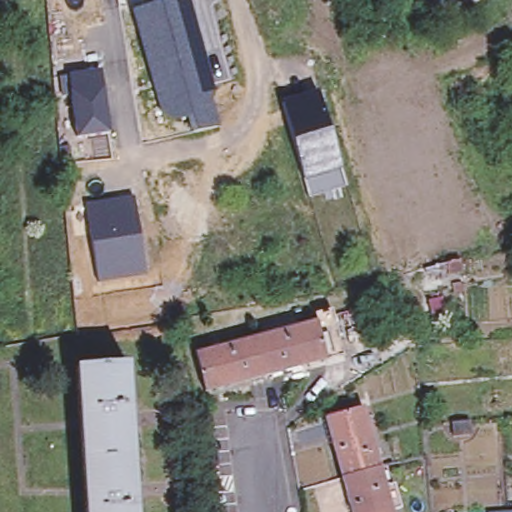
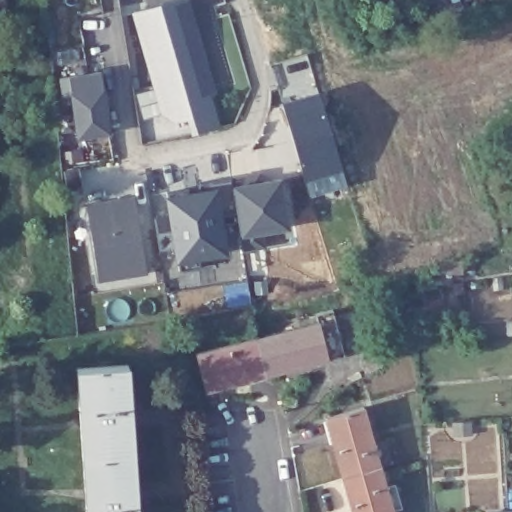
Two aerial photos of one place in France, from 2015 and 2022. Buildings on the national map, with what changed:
unchanged [(147,4),(165,0),(188,0),(215,90),(210,92),(219,126),(191,132),(187,115),(171,119),(157,110),(130,10),(118,8),(117,0),(147,0),(147,4)]
unchanged [(101,68),(110,135),(75,140),(65,74),(101,68)]
unchanged [(340,168),(347,189),(310,200),(303,181),(282,106),(318,93),(340,168)]
new [(265,179),(282,177),(290,229),(265,233),(266,249),(245,252),(245,235),(241,236),(232,185),(230,176),(260,171),(265,179)]
new [(222,192),(228,261),(177,268),(167,200),(222,192)]
unchanged [(135,193),(147,276),(99,284),(85,203),(135,193)]
unchanged [(301,311),(317,306),(330,352),(313,357),(252,373),(242,335),(303,318),(301,311)]
unchanged [(252,373),(191,390),(180,351),(242,335),(252,373)]
unchanged [(87,512),(77,360),(127,356),(137,512),(87,512)]
unchanged [(338,475),(322,414),(360,403),(377,464),(338,475)]
unchanged [(349,512),(338,475),(377,464),(391,512),(349,512)]
unchanged [(505,510),(512,509),(512,512),(485,512),(485,511),(505,510)]

